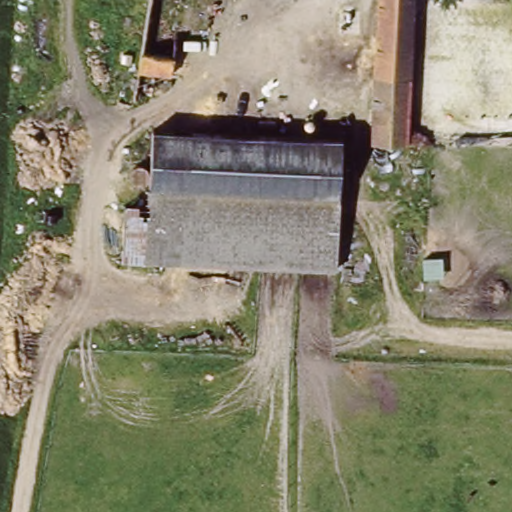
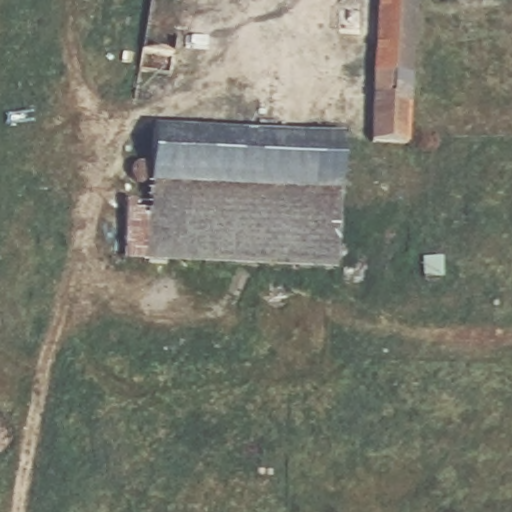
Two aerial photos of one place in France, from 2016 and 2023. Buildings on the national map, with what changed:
unchanged [(415,0),(408,149),(370,150),(379,0),(415,0)]
unchanged [(342,146),(342,167),(335,275),(122,267),(125,212),(148,211),(153,135),(342,146)]

